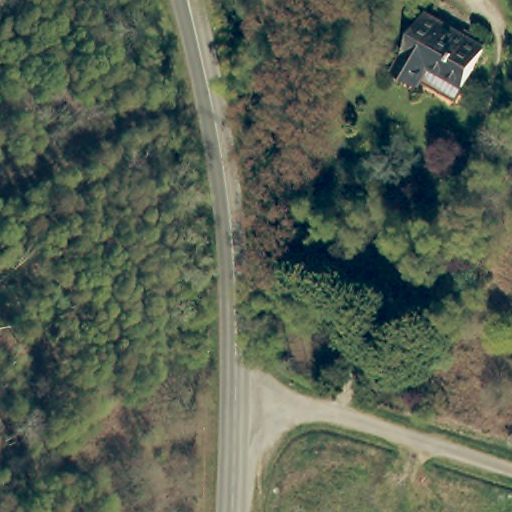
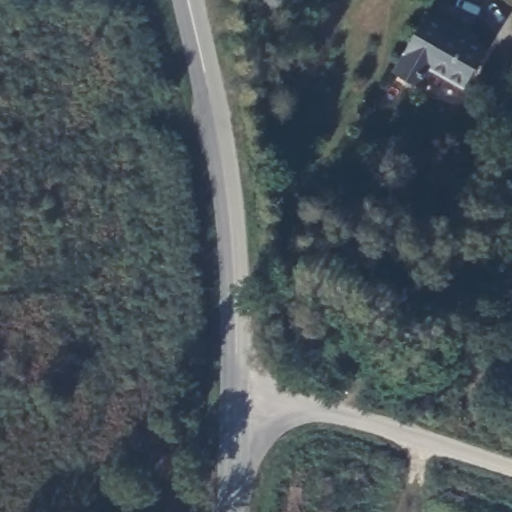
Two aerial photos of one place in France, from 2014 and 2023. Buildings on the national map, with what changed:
unchanged [(393,71),(402,52),(400,50),(422,11),(486,43),(464,83),(428,64),(418,84),(393,71)]

